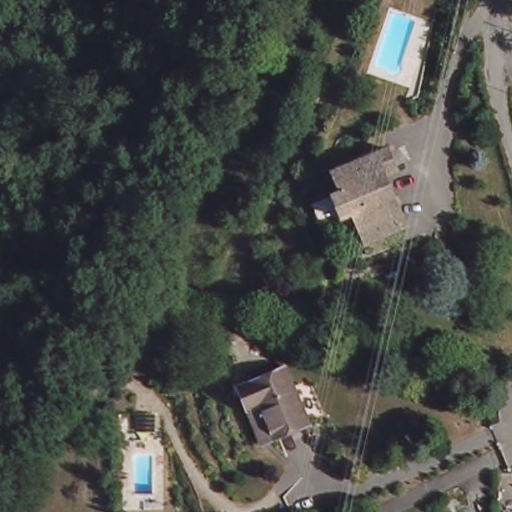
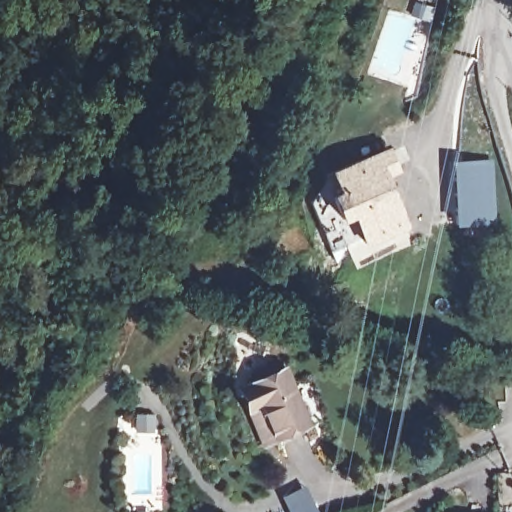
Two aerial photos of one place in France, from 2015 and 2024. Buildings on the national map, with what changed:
unchanged [(386,149),(394,170),(382,175),(402,226),(358,243),(348,216),(319,227),(309,203),(338,192),(329,170),(386,149)]
new [(494,158),(497,226),(454,227),(451,159),(494,158)]
unchanged [(243,409),(233,387),(281,371),(303,427),(269,439),(256,444),(243,409)]

